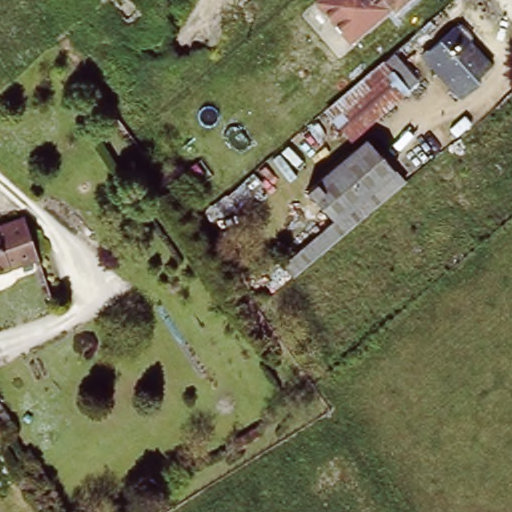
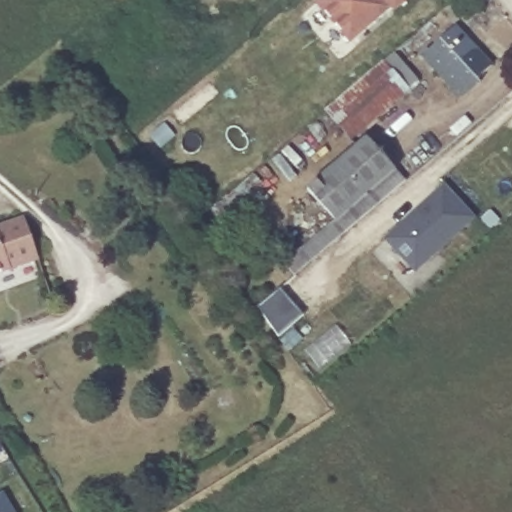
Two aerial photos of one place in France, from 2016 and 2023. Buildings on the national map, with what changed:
unchanged [(344,46),(313,2),(316,0),(403,0),(344,46)]
unchanged [(496,66),(467,92),(430,52),(458,26),(496,66)]
unchanged [(395,55),(420,89),(366,140),(366,142),(358,149),(326,116),(395,55)]
unchanged [(283,268),(328,229),(303,197),(358,149),(366,142),(404,187),(331,249),(294,282),(283,268)]
unchanged [(440,177),(457,162),(469,178),(473,182),(478,187),(461,202),(456,196),(453,192),(440,177)]
new [(415,272),(384,239),(444,185),(474,218),(415,272)]
unchanged [(25,222),(41,263),(0,278),(0,231),(25,222)]
new [(278,288),(301,313),(278,336),(256,308),(278,288)]
new [(3,492),(12,512),(0,512),(0,493),(3,492)]

